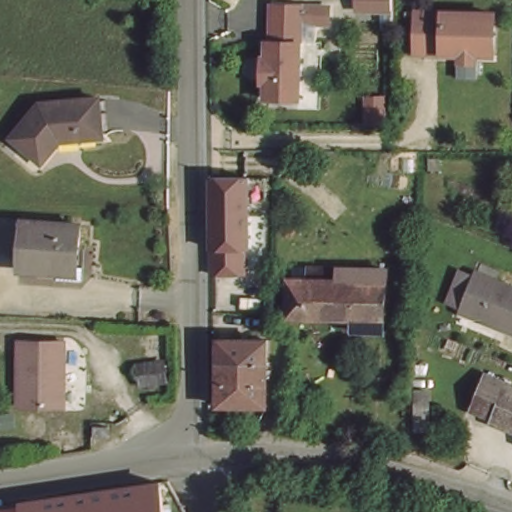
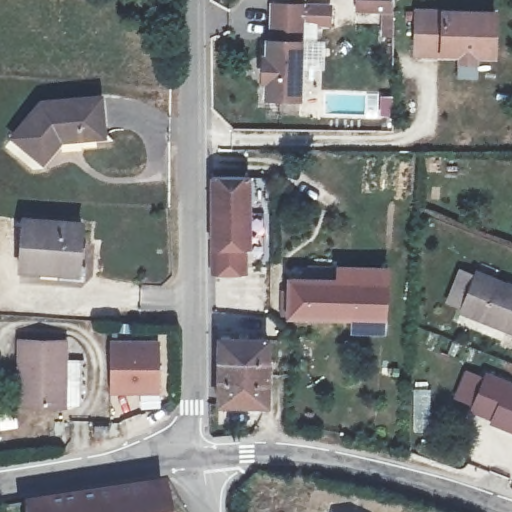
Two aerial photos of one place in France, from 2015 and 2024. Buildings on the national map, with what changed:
unchanged [(357,0),(394,0),(394,9),(356,9),(357,0)]
unchanged [(266,81),(261,81),(263,56),(266,56),(266,39),(270,39),(271,3),(329,4),(329,21),(302,21),(300,96),(266,95),(266,81)]
unchanged [(416,59),(417,16),(495,19),(492,61),(416,59)]
unchanged [(51,103),(51,98),(90,98),(93,98),(95,134),(63,136),(41,158),(27,156),(5,135),(41,102),(51,103)]
unchanged [(208,169),(251,169),(251,269),(208,268),(208,169)]
unchanged [(78,223),(74,271),(15,265),(20,218),(78,223)]
unchanged [(462,313),(479,272),(512,285),(512,334),(462,313)]
unchanged [(288,327),(287,293),(303,293),(303,279),(385,281),(381,330),(288,327)]
new [(108,335),(156,339),(153,387),(105,385),(108,335)]
unchanged [(15,406),(20,342),(64,342),(60,407),(15,406)]
unchanged [(213,408),(216,342),(268,347),(264,409),(213,408)]
unchanged [(491,425),(493,421),(470,410),(485,376),(511,387),(510,389),(512,390),(512,434),(491,425)]
unchanged [(105,422),(106,437),(93,438),(91,421),(105,419),(105,422)]
unchanged [(20,509),(161,489),(164,512),(21,512),(20,509)]

